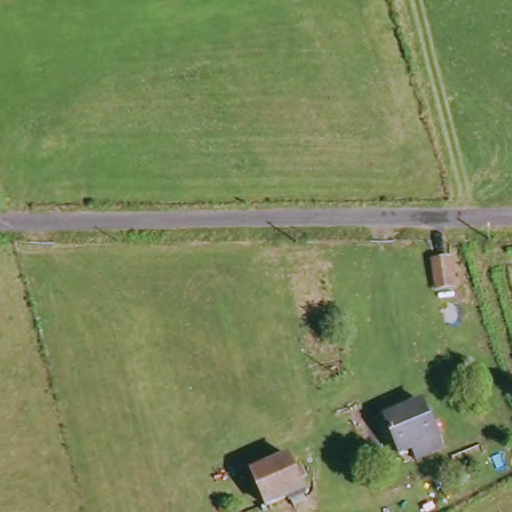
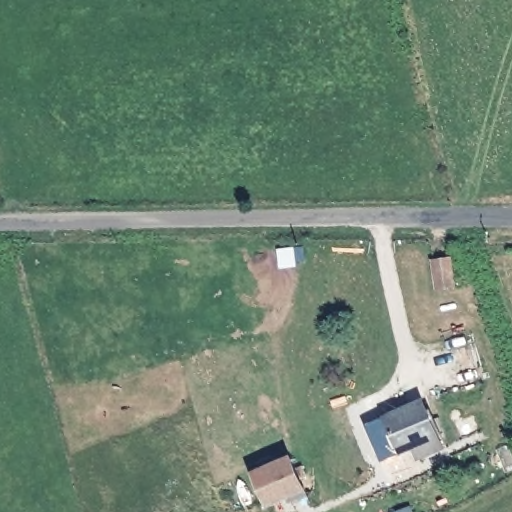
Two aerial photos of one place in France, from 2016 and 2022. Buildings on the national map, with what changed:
unchanged [(438,286),(431,260),(447,256),(453,282),(438,286)]
unchanged [(407,454),(402,442),(394,443),(386,422),(431,403),(444,439),(407,454)]
unchanged [(255,472),(293,457),(306,491),(268,506),(255,472)]

